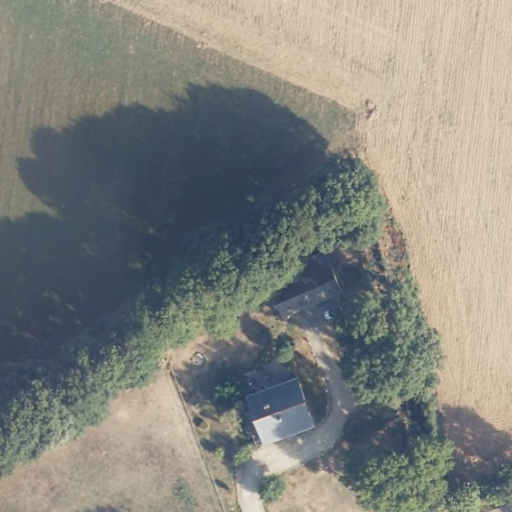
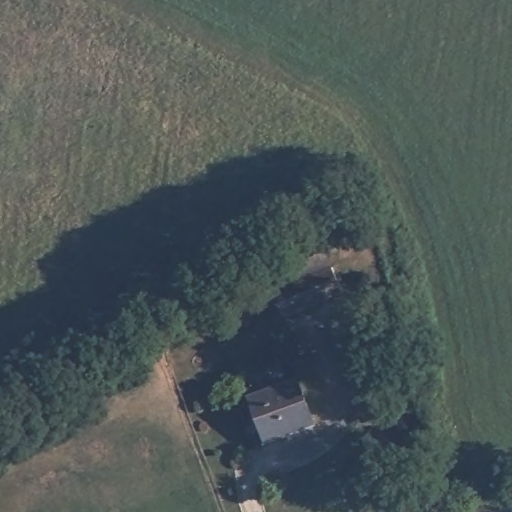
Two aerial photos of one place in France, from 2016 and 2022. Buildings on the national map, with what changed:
unchanged [(334,263),(347,292),(286,318),(273,288),(334,263)]
unchanged [(297,380),(314,427),(267,444),(250,398),(297,380)]

